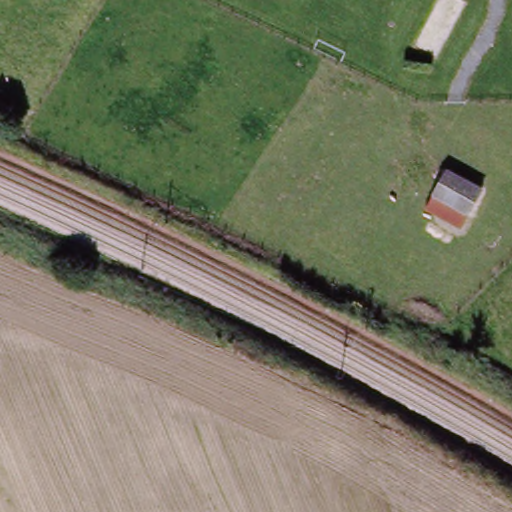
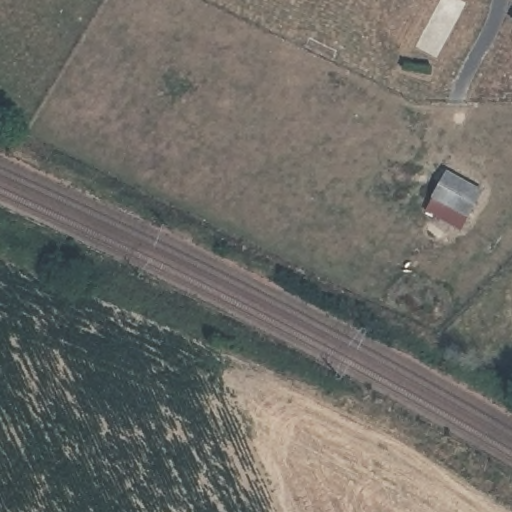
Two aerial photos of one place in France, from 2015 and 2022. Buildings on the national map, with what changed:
unchanged [(483,189),(471,211),(435,190),(448,169),(483,189)]

